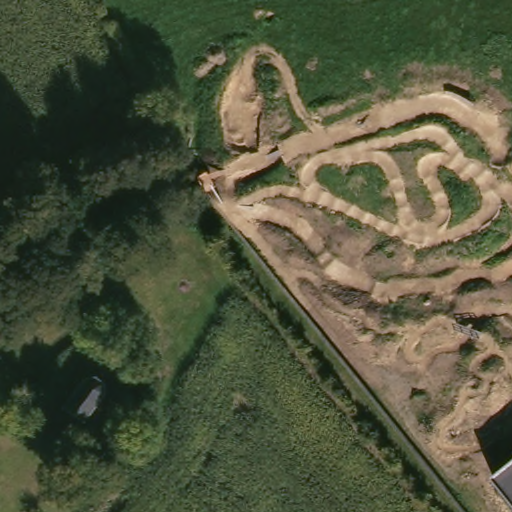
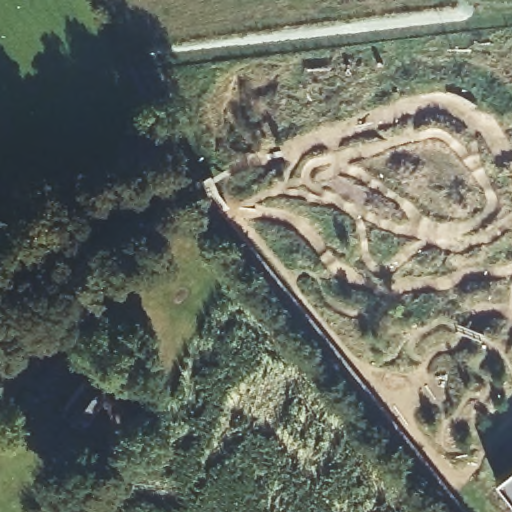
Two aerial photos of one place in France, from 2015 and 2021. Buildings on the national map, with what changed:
unchanged [(63,415),(85,384),(95,382),(104,389),(106,399),(83,429),(63,415)]
unchanged [(512,467),(512,501),(496,480),(512,467)]

